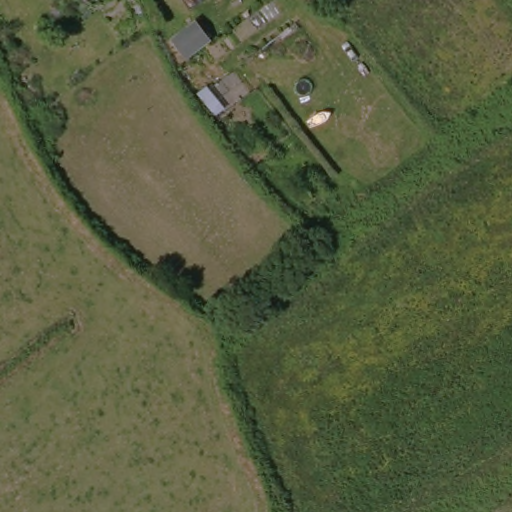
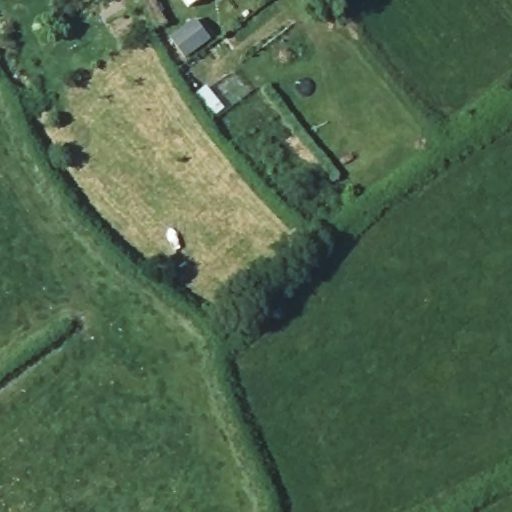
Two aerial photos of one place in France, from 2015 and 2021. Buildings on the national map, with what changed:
unchanged [(189,0),(205,0),(194,8),(189,0)]
unchanged [(196,20),(209,40),(184,56),(171,36),(196,20)]

